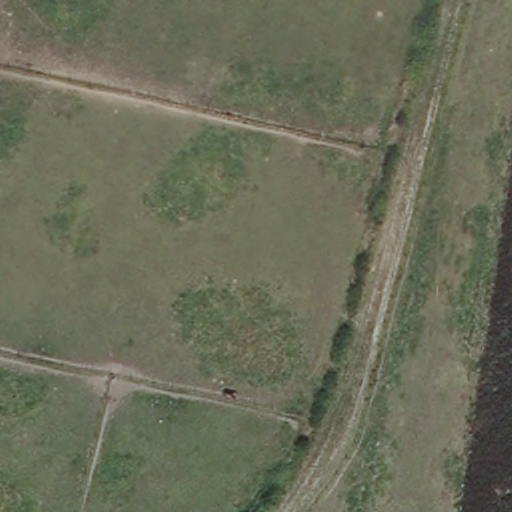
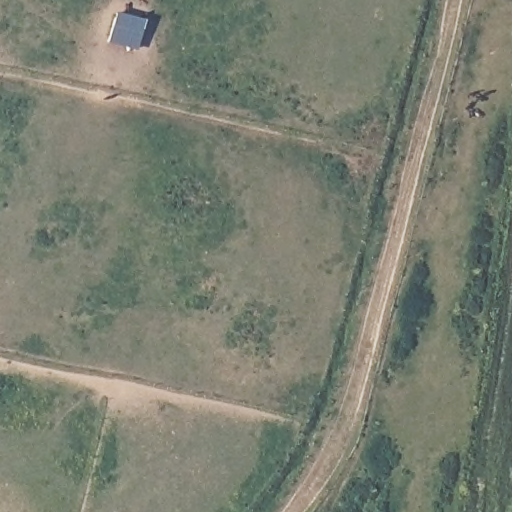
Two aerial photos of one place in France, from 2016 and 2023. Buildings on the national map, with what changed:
new [(147,20),(140,50),(108,42),(117,12),(147,20)]

